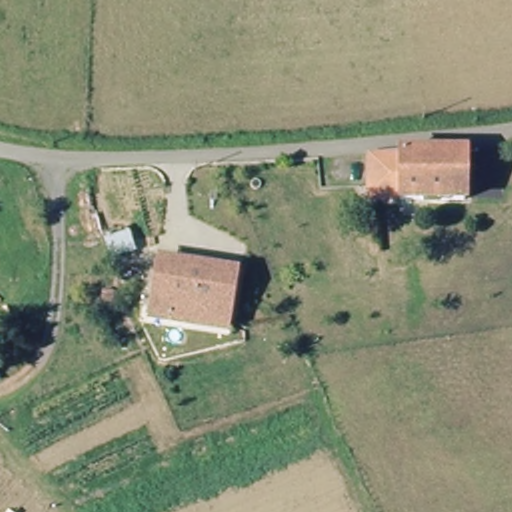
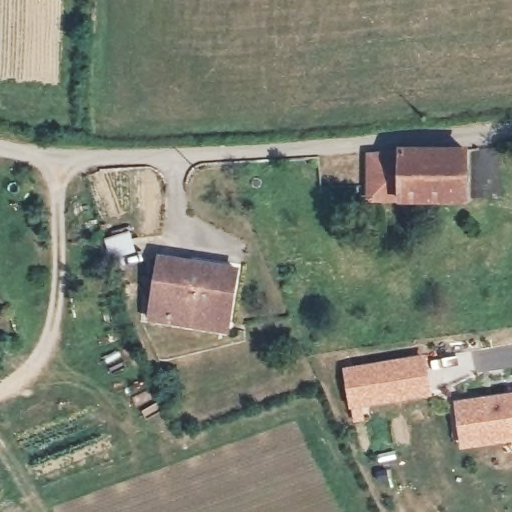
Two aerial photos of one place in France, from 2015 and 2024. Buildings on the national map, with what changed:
unchanged [(391,154),(470,150),(470,201),(391,201),(377,200),(372,200),(372,154),(391,154)]
unchanged [(199,324),(157,322),(158,260),(236,262),(235,308),(235,325),(199,324)]
new [(432,395),(362,406),(363,419),(353,420),(343,367),(426,353),(432,395)]
new [(512,442),(462,449),(454,399),(512,391),(512,442)]

